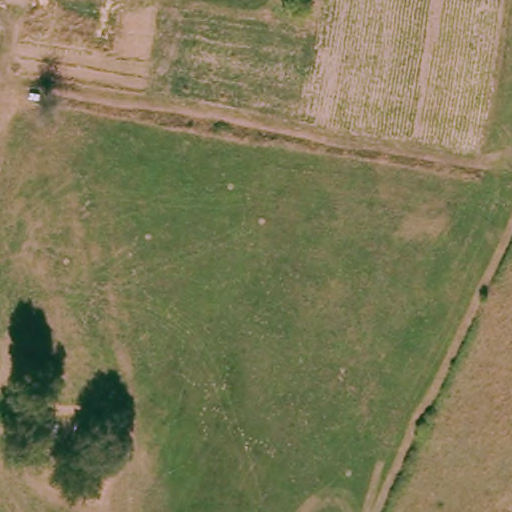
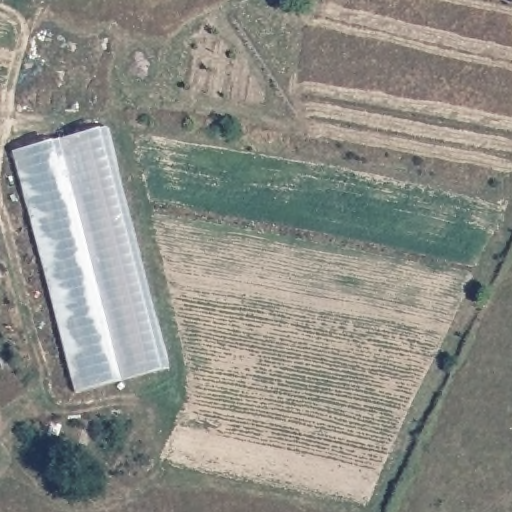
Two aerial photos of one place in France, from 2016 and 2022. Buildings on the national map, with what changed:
new [(161,369),(76,392),(13,151),(99,129),(161,369)]

